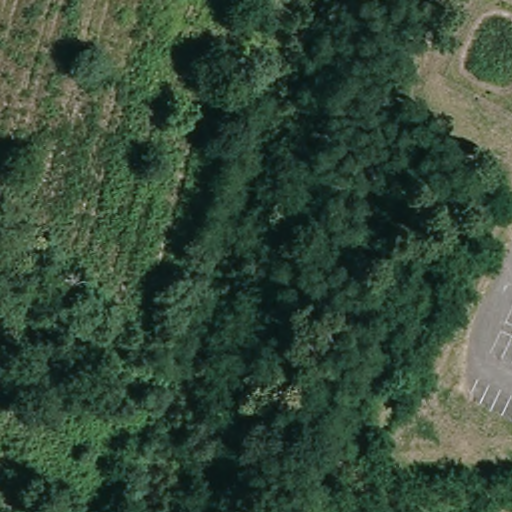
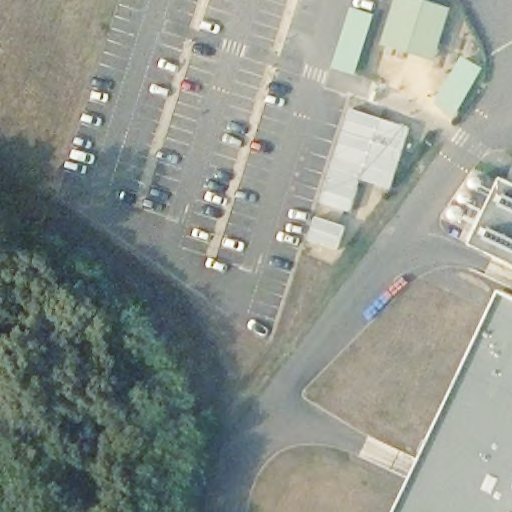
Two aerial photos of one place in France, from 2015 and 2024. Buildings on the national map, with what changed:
new [(436,61),(383,45),(397,0),(425,0),(451,9),(436,61)]
new [(350,9),(372,16),(353,76),(332,69),(350,9)]
new [(481,69),(454,117),(435,104),(460,58),(481,69)]
new [(348,108),(410,127),(390,190),(360,180),(350,213),(319,202),(348,108)]
new [(470,245),(501,178),(512,183),(512,264),(470,245)]
new [(314,216),(347,226),(337,251),(305,240),(314,216)]
new [(397,512),(502,292),(512,297),(512,512),(397,512)]

